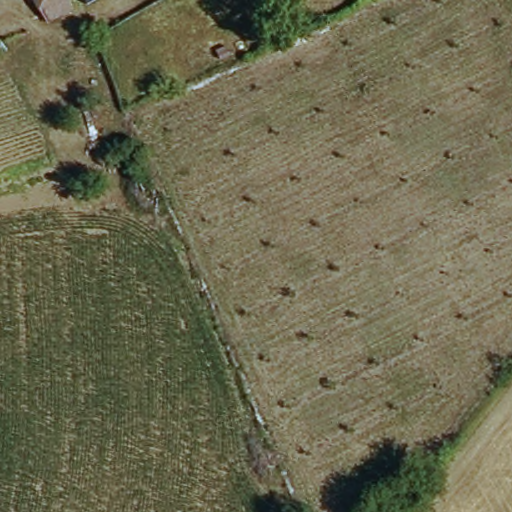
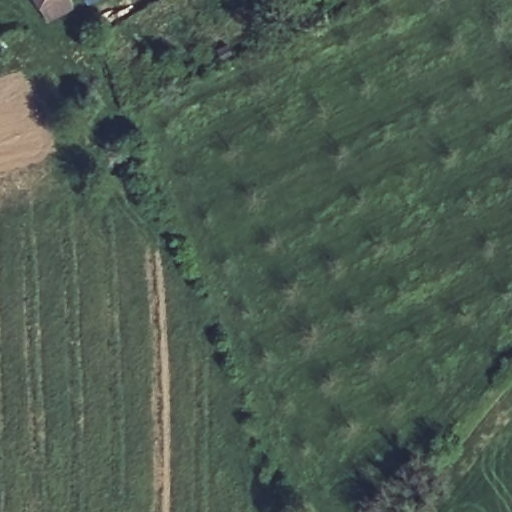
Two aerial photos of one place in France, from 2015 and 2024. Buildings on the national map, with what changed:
unchanged [(34,0),(55,0),(50,3),(56,16),(45,21),(34,0)]
unchanged [(88,0),(94,0),(90,3),(88,0)]

